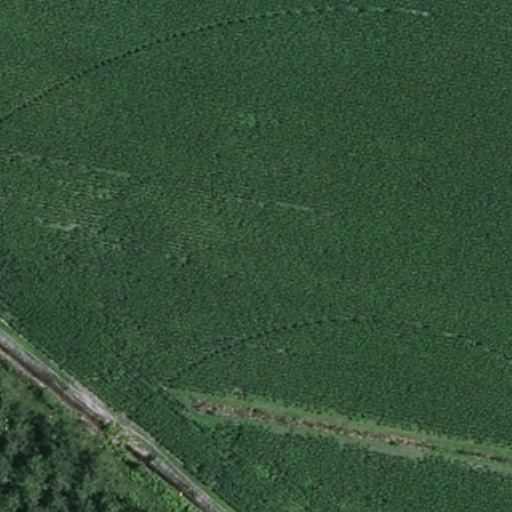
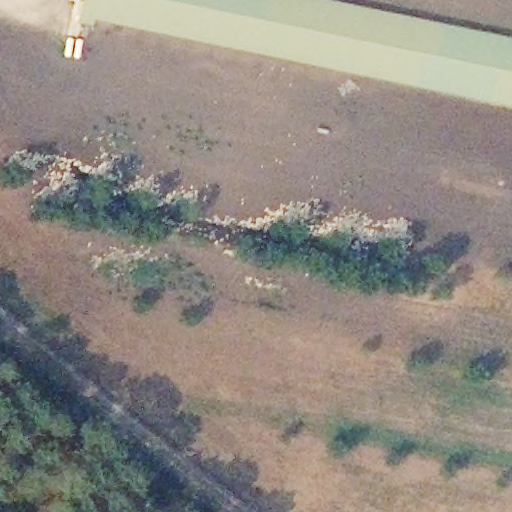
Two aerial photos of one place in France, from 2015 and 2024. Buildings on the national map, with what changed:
new [(86,24),(74,20),(78,0),(330,0),(512,37),(512,106),(87,17),(86,24)]

